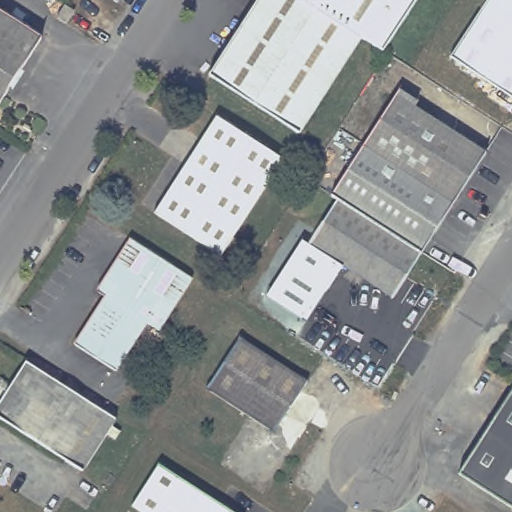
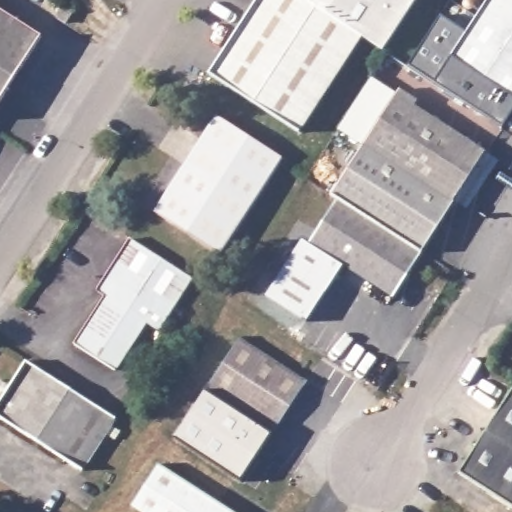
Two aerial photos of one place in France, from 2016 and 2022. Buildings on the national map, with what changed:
unchanged [(255,0),(306,0),(360,35),(298,132),(207,74),(255,0)]
unchanged [(306,0),(415,0),(383,50),(360,35),(306,0)]
unchanged [(449,55),(486,0),(512,0),(512,97),(449,55)]
unchanged [(57,16),(65,4),(74,10),(66,22),(57,16)]
unchanged [(0,101),(0,9),(43,36),(0,101)]
unchanged [(396,93),(488,151),(454,203),(422,252),(338,199),(330,194),(358,152),(396,93)]
unchanged [(215,114),(284,158),(221,255),(154,210),(215,114)]
unchanged [(393,298),(309,243),(338,199),(422,252),(393,298)]
unchanged [(129,237),(193,278),(159,330),(146,322),(115,370),(74,342),(104,296),(95,289),(129,237)]
unchanged [(205,387),(239,335),(309,379),(274,431),(205,387)]
unchanged [(115,418),(82,470),(0,417),(0,397),(24,360),(115,418)]
new [(274,431),(240,481),(174,436),(205,387),(274,431)]
unchanged [(459,471),(512,387),(512,506),(459,471)]
unchanged [(159,463),(234,512),(141,512),(131,506),(159,463)]

